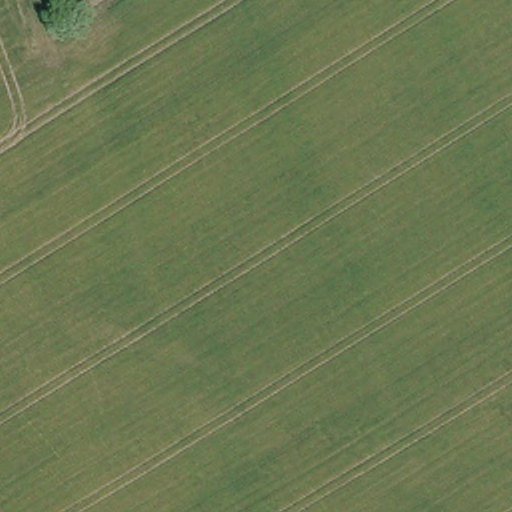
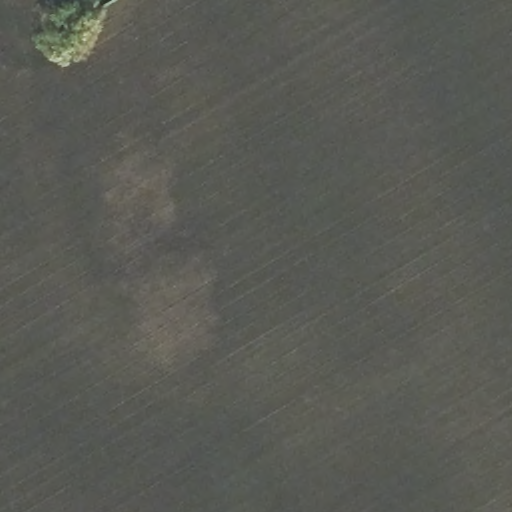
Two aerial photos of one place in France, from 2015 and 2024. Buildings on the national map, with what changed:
[]

